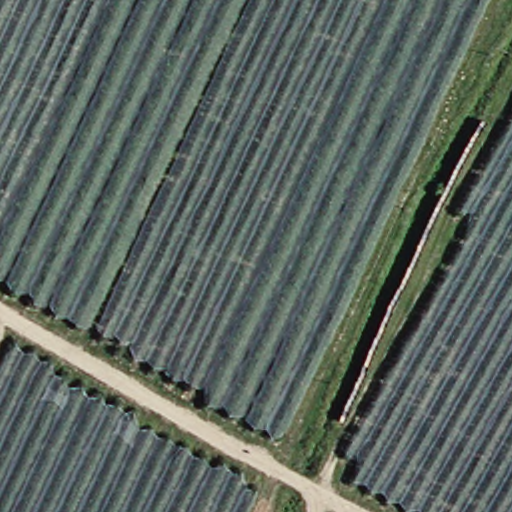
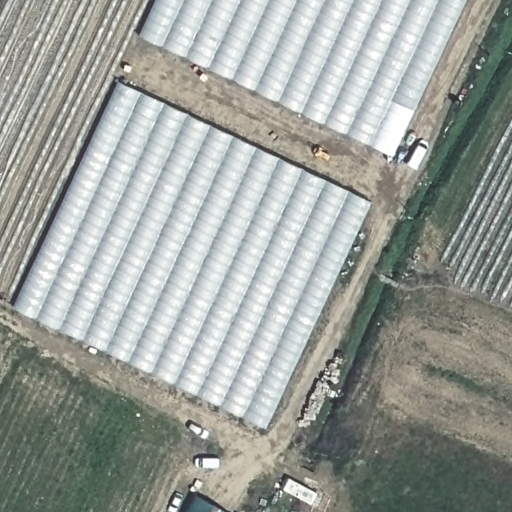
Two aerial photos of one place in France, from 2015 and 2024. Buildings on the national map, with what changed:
new [(394,157),(139,34),(155,0),(467,0),(394,157)]
new [(266,427),(14,306),(118,79),(373,202),(266,427)]
new [(229,512),(185,512),(194,494),(229,512)]

